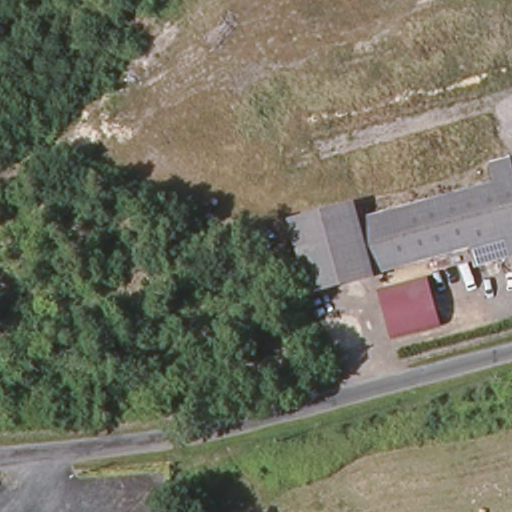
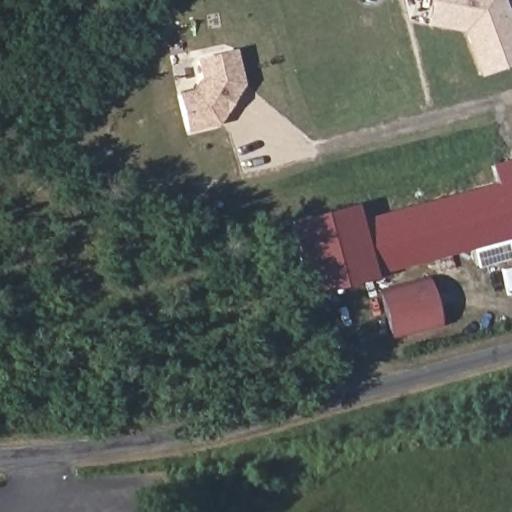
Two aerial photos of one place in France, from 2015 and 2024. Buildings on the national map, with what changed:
new [(438,0),(486,0),(494,20),(505,15),(512,35),(512,65),(484,75),(469,31),(434,24),(438,0)]
new [(505,15),(494,20),(486,0),(505,0),(512,20),(512,35),(505,15)]
new [(195,91),(202,79),(198,61),(233,52),(242,85),(219,124),(189,132),(179,96),(195,91)]
unchanged [(358,202),(363,219),(496,184),(490,163),(510,158),(512,166),(512,257),(477,266),(470,247),(375,271),(377,277),(312,293),(290,219),(358,202)]
unchanged [(438,326),(394,337),(386,292),(429,280),(438,326)]

